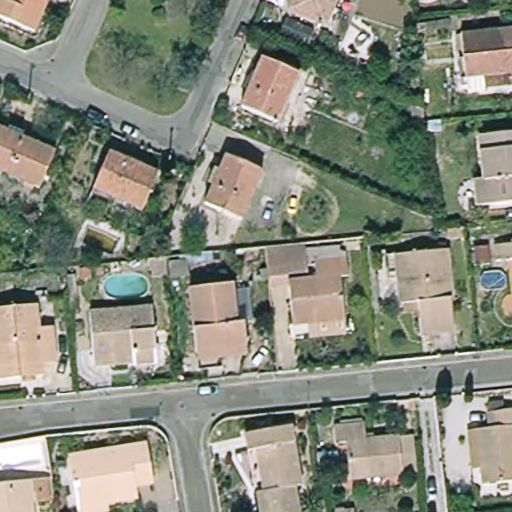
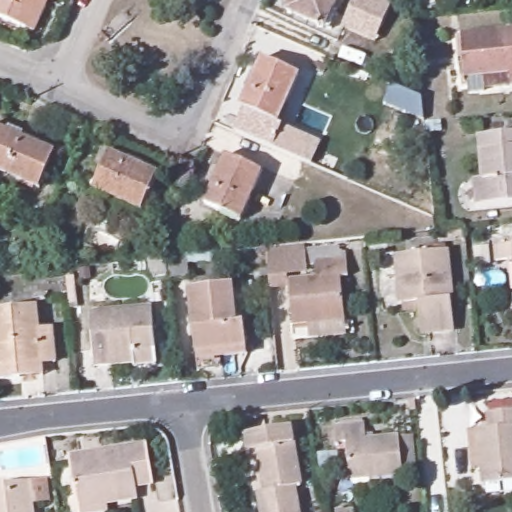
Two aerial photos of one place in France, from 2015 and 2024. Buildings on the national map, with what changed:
unchanged [(3,16),(9,0),(52,0),(39,32),(3,16)]
unchanged [(284,7),(287,0),(329,0),(319,23),(284,7)]
new [(375,42),(342,28),(354,0),(383,0),(392,4),(375,42)]
unchanged [(467,89),(461,33),(512,29),(512,85),(467,89)]
unchanged [(299,71),(278,119),(241,102),(263,54),(299,71)]
unchanged [(35,193),(0,177),(0,133),(52,156),(35,193)]
unchanged [(477,206),(474,180),(483,179),(479,136),(512,133),(512,203),(477,206)]
unchanged [(155,178),(143,205),(96,184),(109,156),(155,178)]
unchanged [(261,171),(239,220),(204,204),(226,156),(261,171)]
unchanged [(512,238),(512,253),(503,253),(503,239),(512,238)]
unchanged [(303,250),(305,265),(306,274),(286,275),(287,281),(288,287),(267,289),(264,250),(303,246),(303,250)]
unchanged [(337,246),(338,251),(343,251),(347,275),(339,276),(345,331),(307,335),(305,321),(290,322),(288,287),(287,281),(315,279),(314,264),(305,265),(303,250),(337,246)]
unchanged [(418,308),(403,310),(397,258),(443,252),(453,327),(421,331),(418,308)]
unchanged [(164,261),(185,259),(187,277),(166,279),(164,261)]
unchanged [(195,366),(193,347),(186,284),(232,278),(233,284),(247,283),(250,316),(243,317),(245,341),(247,350),(246,350),(217,354),(218,364),(195,366)]
unchanged [(33,326),(46,324),(49,355),(36,356),(36,368),(0,372),(0,304),(29,301),(33,326)]
unchanged [(150,306),(154,363),(134,363),(133,361),(93,363),(90,311),(150,306)]
unchanged [(470,424),(480,423),(492,422),(490,407),(512,404),(512,475),(485,478),(483,462),(473,463),(470,424)]
unchanged [(411,472),(398,473),(345,479),(340,442),(330,442),(328,424),(359,421),(361,440),(395,436),(408,434),(411,472)]
unchanged [(258,491),(264,490),(257,450),(247,452),(245,433),(290,426),(301,483),(295,484),(298,512),(261,512),(258,491)]
unchanged [(104,512),(77,512),(77,506),(69,457),(145,444),(152,481),(135,484),(138,497),(107,502),(108,511),(104,512)]
unchanged [(0,485),(50,478),(54,501),(37,503),(38,512),(0,512),(0,485)]
unchanged [(335,511),(352,509),(352,512),(335,512),(335,511)]

